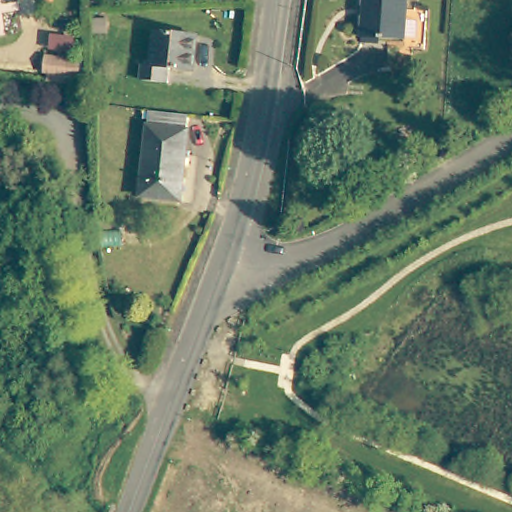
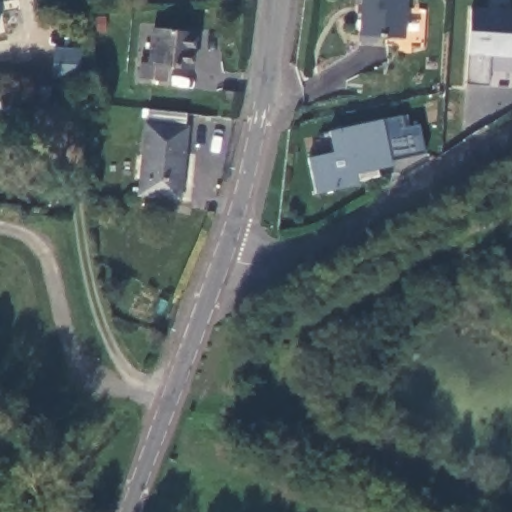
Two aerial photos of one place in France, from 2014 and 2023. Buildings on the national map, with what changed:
unchanged [(375,0),(419,0),(417,40),(373,38),(375,0)]
new [(492,58),(489,85),(465,83),(470,7),(512,10),(512,59),(492,58)]
unchanged [(181,59),(179,74),(151,71),(153,55),(162,56),(166,22),(209,27),(205,62),(181,59)]
unchanged [(44,69),(46,53),(79,58),(80,75),(44,69)]
unchanged [(192,132),(193,132),(186,202),(146,198),(154,128),(156,113),(194,116),(192,132)]
new [(334,153),(329,132),(383,120),(385,133),(405,129),(407,137),(421,135),(425,154),(392,161),(393,166),(377,170),(379,177),(358,182),(359,184),(316,194),(309,159),(334,153)]
demolished [(132,225),(132,227),(130,242),(103,239),(105,224),(105,222),(132,225)]
demolished [(242,313),(255,268),(269,274),(256,320),(242,313)]

